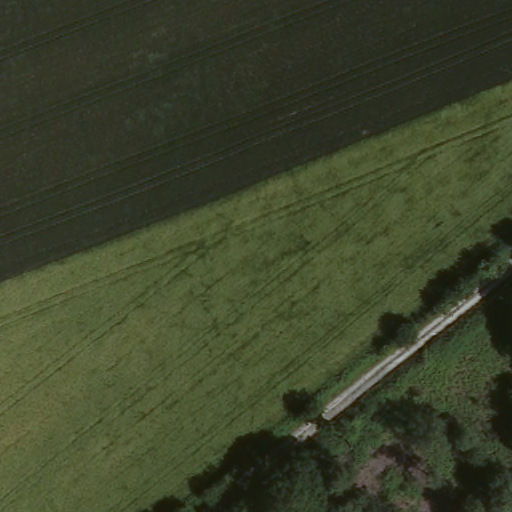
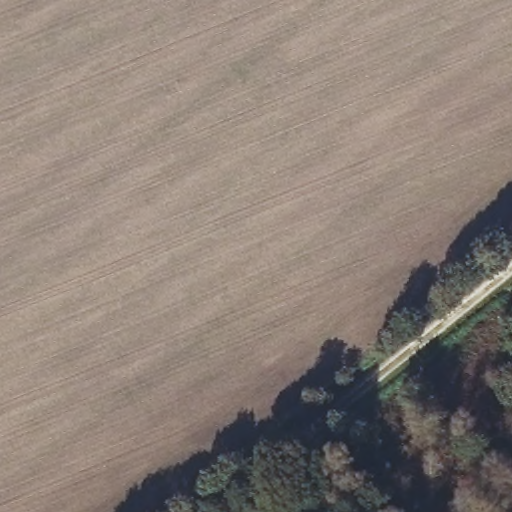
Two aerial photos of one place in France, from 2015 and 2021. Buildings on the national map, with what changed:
[]

